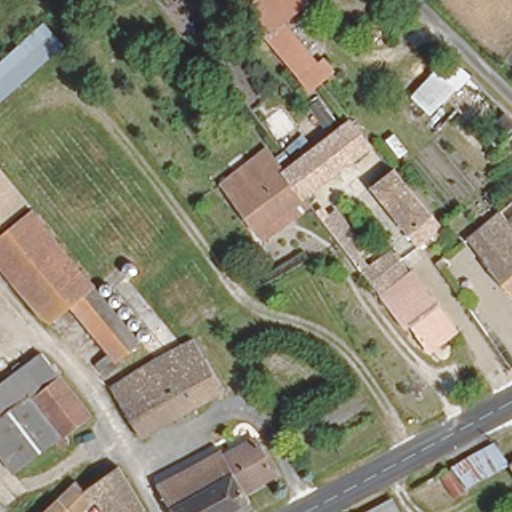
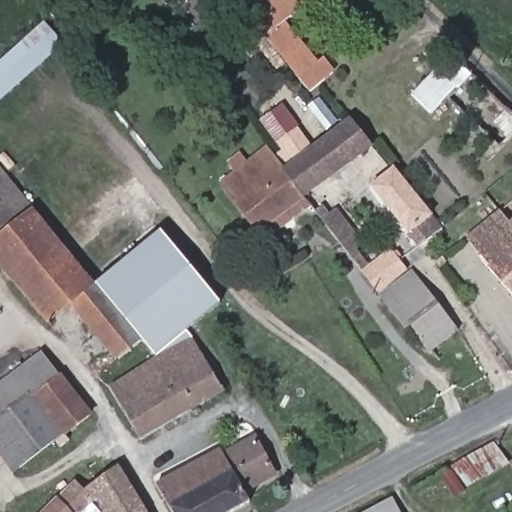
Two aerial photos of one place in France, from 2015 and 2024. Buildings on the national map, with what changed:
unchanged [(262,37),(243,14),(259,0),(306,0),(309,2),(300,10),(284,23),(317,63),(323,59),(335,72),(323,82),(309,94),(262,37)]
unchanged [(0,59),(41,20),(65,44),(0,106),(0,59)]
unchanged [(410,94),(436,67),(474,74),(431,116),(410,94)]
unchanged [(198,75),(210,92),(199,99),(186,83),(198,75)]
unchanged [(219,122),(229,136),(219,143),(209,130),(219,122)]
unchanged [(275,177),(344,129),(364,154),(296,205),(275,177)]
unchanged [(226,182),(237,174),(227,160),(245,146),(255,159),(259,155),(264,162),(275,177),(296,205),(264,229),(226,182)]
unchanged [(421,243),(374,182),(396,166),(444,225),(421,243)]
unchanged [(28,214),(0,237),(0,173),(31,211),(28,214)]
unchanged [(494,212),(512,197),(512,232),(494,212)]
unchanged [(462,239),(494,212),(512,232),(512,294),(462,239)]
unchanged [(138,347),(113,366),(69,312),(45,333),(0,277),(0,237),(28,214),(138,347)]
new [(161,232),(220,304),(155,356),(97,285),(161,232)]
unchanged [(358,277),(388,252),(402,270),(373,296),(358,277)]
demolished [(225,312),(209,325),(192,305),(168,320),(150,292),(187,264),(225,312)]
unchanged [(430,356),(409,327),(403,332),(377,301),(407,269),(456,334),(430,356)]
unchanged [(195,338),(207,358),(210,357),(227,388),(143,436),(113,382),(195,338)]
unchanged [(14,476),(0,459),(0,380),(40,350),(59,375),(96,416),(65,437),(14,476)]
unchanged [(222,446),(225,451),(255,434),(276,471),(246,487),(251,498),(226,512),(177,512),(160,481),(222,446)]
unchanged [(431,512),(428,512),(418,488),(492,444),(507,466),(431,512)]
unchanged [(104,508),(90,508),(86,512),(49,512),(77,485),(88,476),(98,486),(117,467),(145,512),(106,512),(104,508)]
unchanged [(397,490),(408,512),(356,512),(397,490)]

